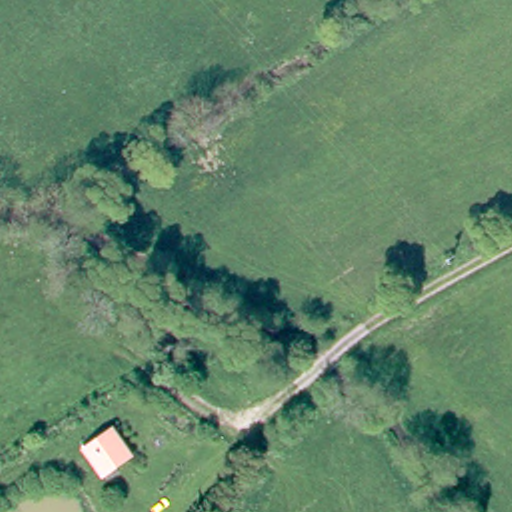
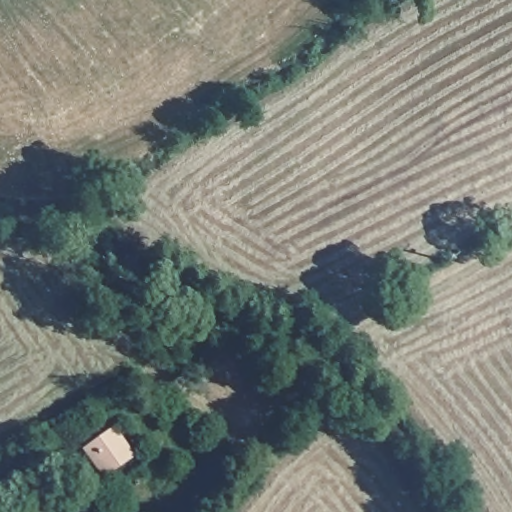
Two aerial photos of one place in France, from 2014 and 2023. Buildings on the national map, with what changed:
unchanged [(115,430),(131,455),(100,475),(84,450),(115,430)]

